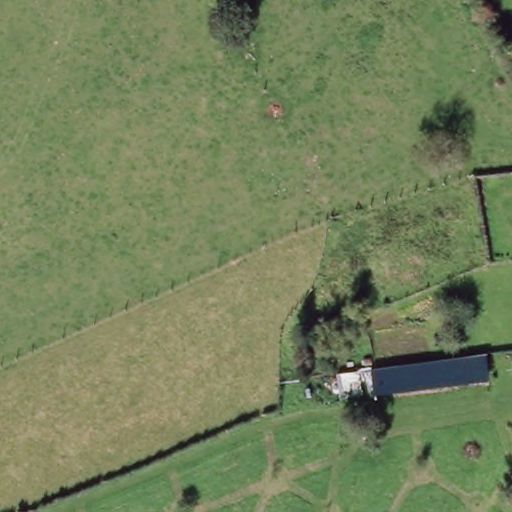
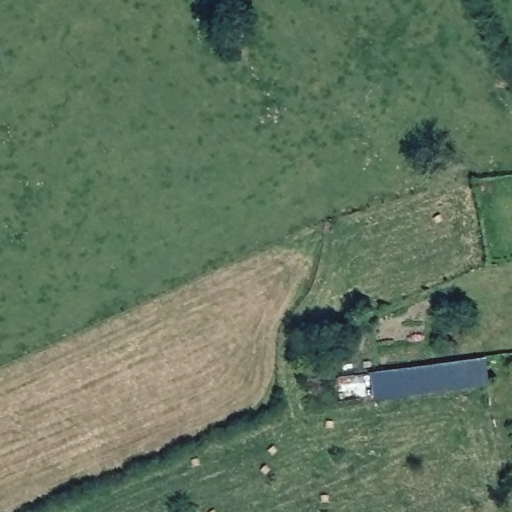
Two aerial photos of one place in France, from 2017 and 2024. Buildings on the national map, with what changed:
unchanged [(375,400),(372,373),(487,360),(489,385),(375,400)]

